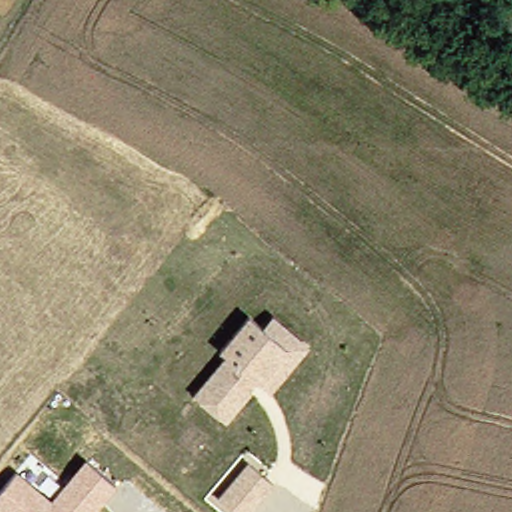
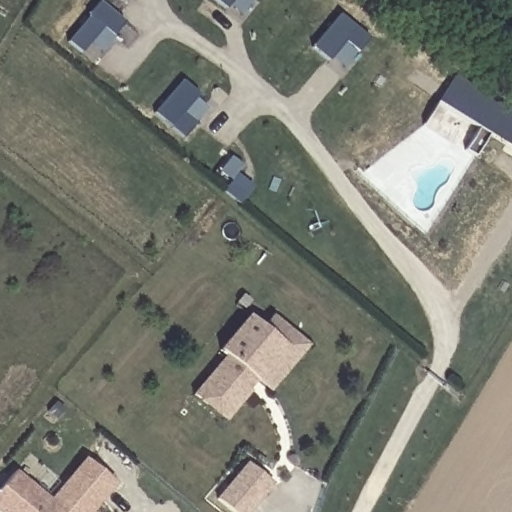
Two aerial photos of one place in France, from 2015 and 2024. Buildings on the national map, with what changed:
new [(222,12),(207,0),(232,0),(222,12)]
new [(251,2),(248,0),(253,0),(251,2)]
new [(85,19),(84,17),(95,4),(121,25),(109,39),(99,30),(78,55),(64,44),(85,19)]
new [(336,16),(366,41),(354,55),(341,44),(325,64),(308,50),(336,16)]
new [(436,103),(453,75),(512,113),(512,150),(436,103)]
new [(182,113),(194,124),(181,140),(152,114),(179,80),(197,95),(182,113)]
unchanged [(284,344),(261,325),(271,313),(305,343),(282,370),(280,373),(269,365),(270,362),(284,344)]
unchanged [(246,315),(261,325),(284,344),(270,362),(230,335),(246,315)]
unchanged [(270,362),(269,365),(253,384),(220,361),(225,355),(219,348),(230,335),(270,362)]
unchanged [(224,419),(191,393),(220,361),(253,384),(224,419)]
unchanged [(50,499),(81,457),(115,483),(92,512),(0,512),(0,487),(14,470),(50,499)]
unchanged [(246,463),(270,484),(250,512),(231,512),(215,499),(246,463)]

